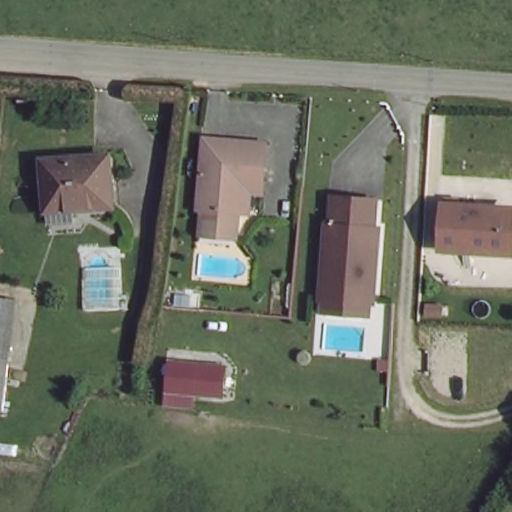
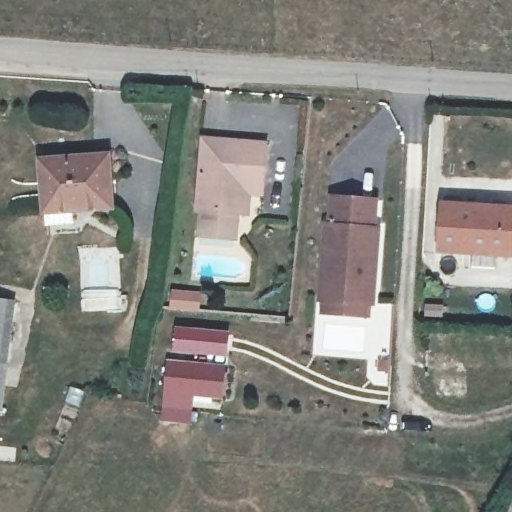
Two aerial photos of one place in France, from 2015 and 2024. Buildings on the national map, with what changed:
unchanged [(251,187),(247,209),(239,208),(237,207),(232,233),(200,228),(201,207),(198,203),(206,133),(269,140),(266,175),(265,186),(251,187)]
unchanged [(107,213),(42,217),(39,168),(103,164),(107,213)]
unchanged [(329,302),(325,302),(330,226),(336,227),(337,199),(380,202),(379,230),(382,230),(377,305),(372,305),(372,317),(328,315),(329,302)]
unchanged [(509,254),(445,249),(447,205),(510,208),(509,254)]
unchanged [(0,408),(0,299),(15,301),(4,408),(0,408)]
new [(174,350),(176,325),(230,330),(228,355),(174,350)]
unchanged [(162,403),(169,353),(244,357),(230,400),(162,403)]

